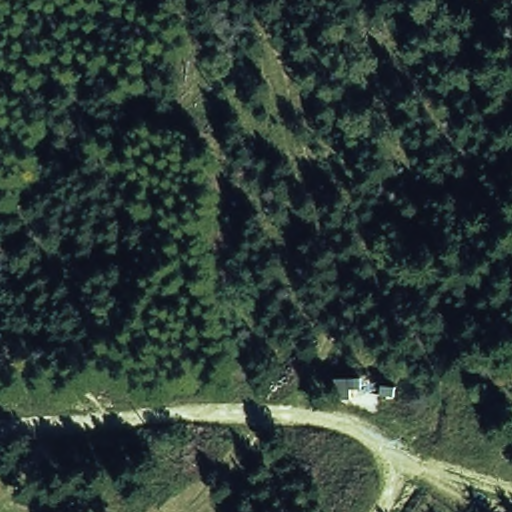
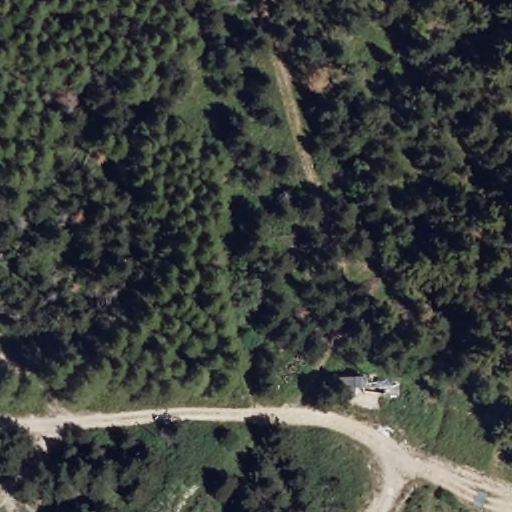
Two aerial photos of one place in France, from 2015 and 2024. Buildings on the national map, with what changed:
unchanged [(349,378),(351,374),(361,375),(360,388),(353,387),(351,396),(331,393),(334,376),(349,378)]

